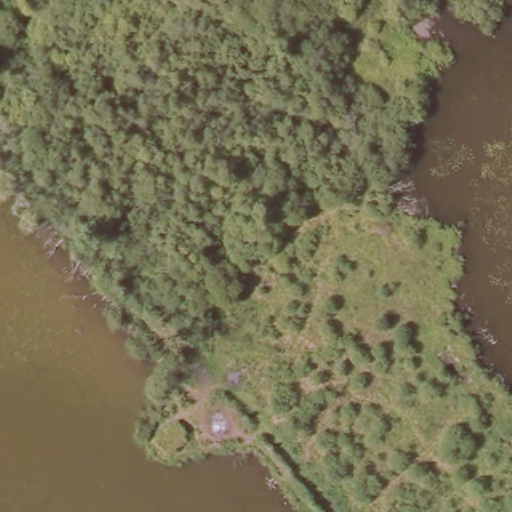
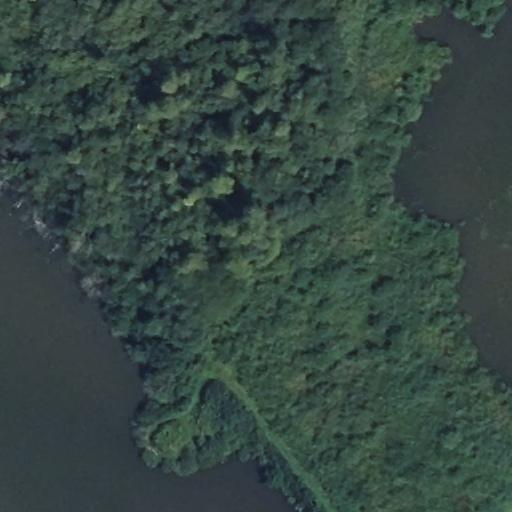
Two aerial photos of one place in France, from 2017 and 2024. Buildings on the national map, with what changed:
unchanged [(178,424),(191,441),(168,458),(155,441),(178,424)]

